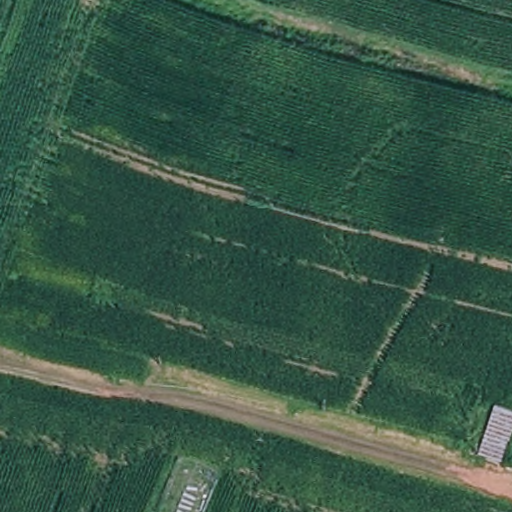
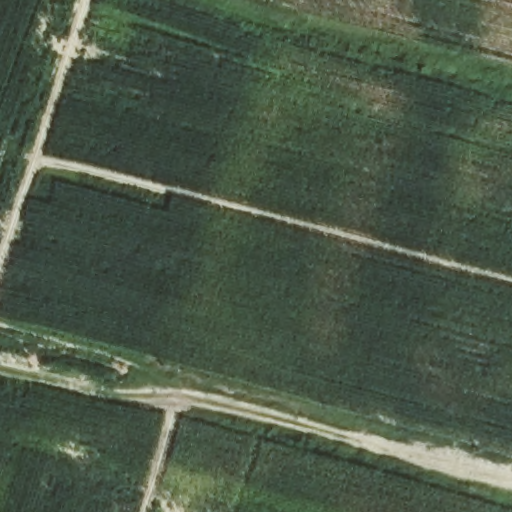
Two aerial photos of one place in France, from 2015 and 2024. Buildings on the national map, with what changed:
demolished [(496,408),(512,414),(512,441),(505,463),(480,455),(496,408)]

